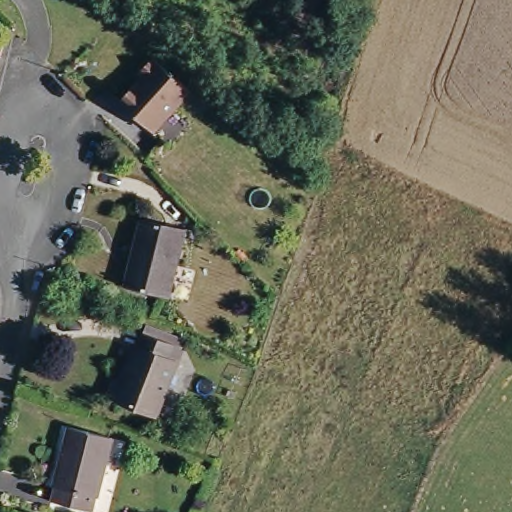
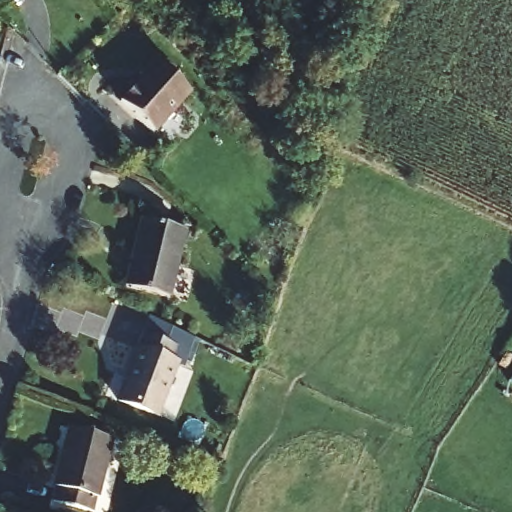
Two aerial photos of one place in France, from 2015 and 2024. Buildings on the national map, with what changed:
unchanged [(155,137),(124,104),(146,81),(142,77),(159,60),(195,95),(155,137)]
unchanged [(139,220),(182,229),(167,296),(124,287),(135,238),(139,220)]
unchanged [(151,427),(112,412),(133,359),(139,342),(172,355),(165,371),(172,374),(151,427)]
unchanged [(86,512),(81,512),(43,501),(65,426),(109,439),(86,512)]

